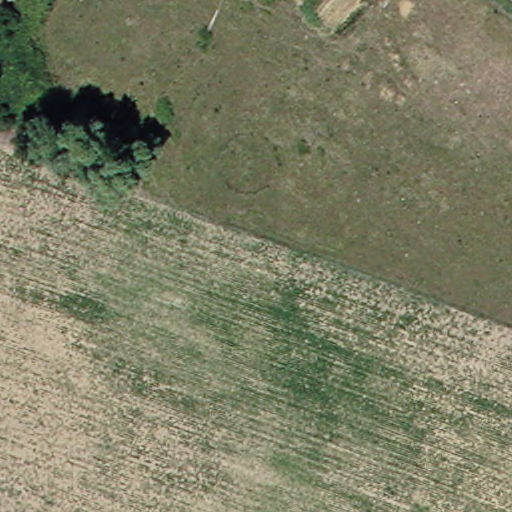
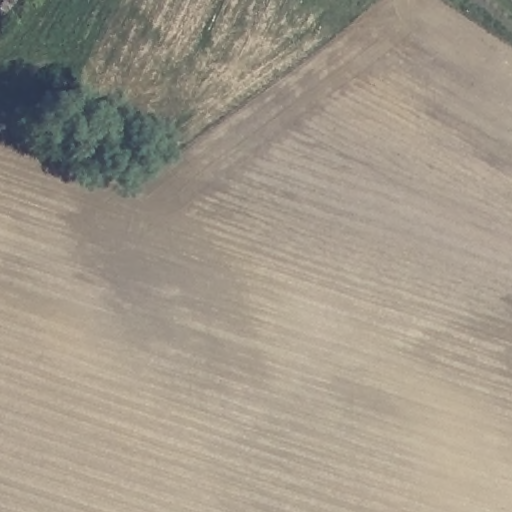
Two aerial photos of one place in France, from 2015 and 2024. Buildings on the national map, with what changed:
[]

